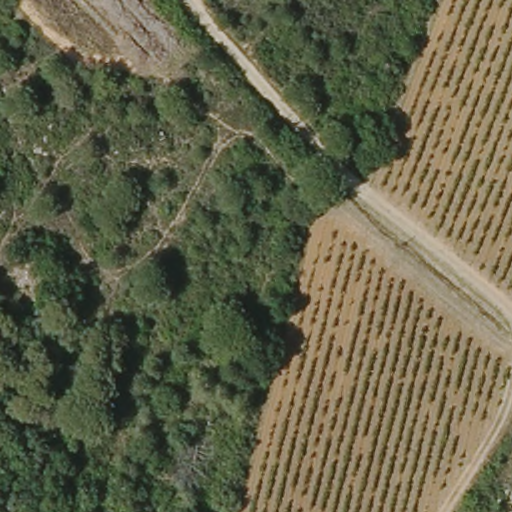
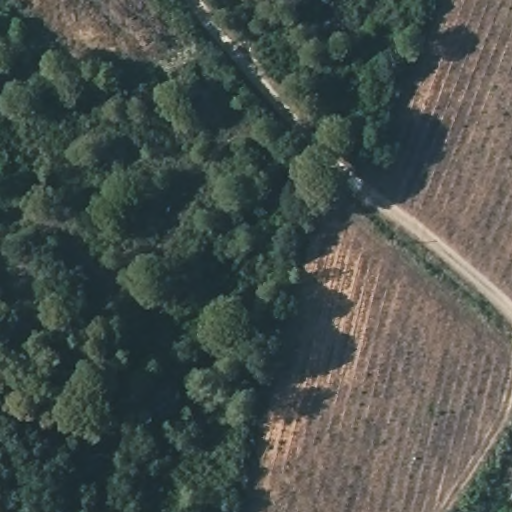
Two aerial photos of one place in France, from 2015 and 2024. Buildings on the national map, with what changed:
unchanged [(36,291),(20,291),(19,252),(35,255),(36,291)]

